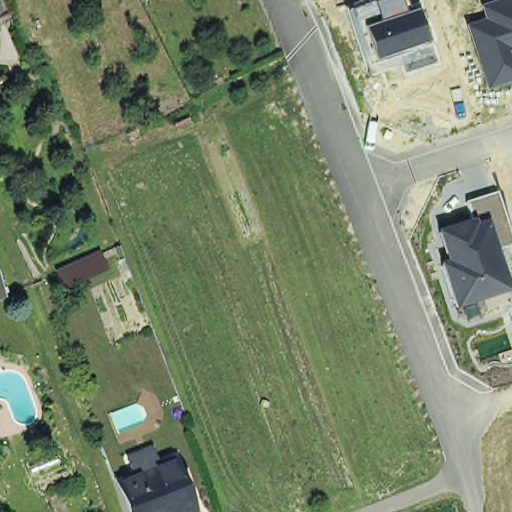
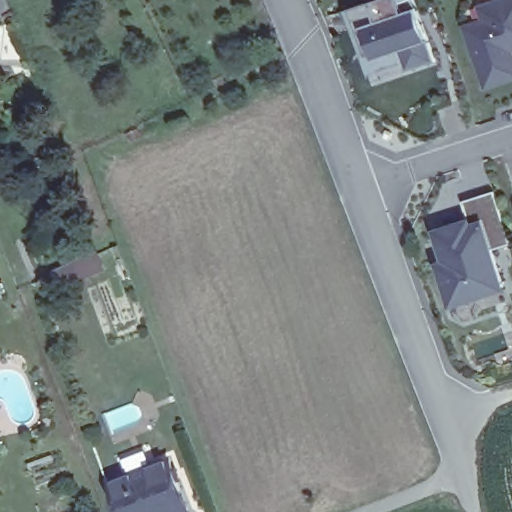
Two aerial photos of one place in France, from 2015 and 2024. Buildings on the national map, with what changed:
unchanged [(373,1),(378,0),(402,0),(404,5),(417,0),(418,10),(428,41),(437,63),(402,74),(400,64),(368,74),(347,9),(373,1)]
unchanged [(497,0),(512,0),(512,81),(487,89),(465,24),(483,18),(479,6),(497,0)]
unchanged [(495,191),(511,243),(495,249),(509,291),(452,308),(437,261),(444,259),(434,229),(469,218),(464,201),(495,191)]
unchanged [(102,246),(111,267),(64,284),(57,265),(102,246)]
unchanged [(0,292),(0,278),(5,290),(0,292)]
unchanged [(181,512),(129,512),(117,481),(170,458),(190,508),(181,512)]

